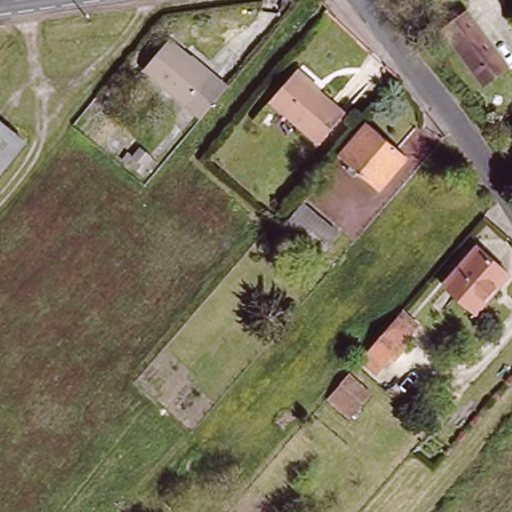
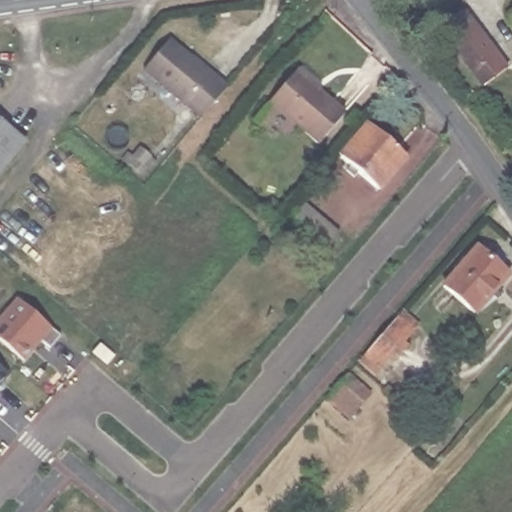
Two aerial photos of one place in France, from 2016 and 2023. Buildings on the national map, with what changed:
unchanged [(486,83),(476,69),(445,27),(467,10),(499,53),(509,67),(486,83)]
unchanged [(137,77),(147,66),(172,37),(228,85),(204,114),(165,82),(156,93),(137,77)]
unchanged [(296,71),(312,86),(311,88),(342,117),(317,146),(267,102),(296,71)]
unchanged [(0,172),(0,124),(24,144),(0,172)]
unchanged [(407,157),(379,189),(342,156),(370,125),(407,157)]
unchanged [(152,151),(144,161),(136,153),(144,144),(152,151)]
unchanged [(340,232),(322,252),(299,232),(292,241),(281,231),(305,203),(340,232)]
unchanged [(474,312),(442,285),(477,245),(509,272),(474,312)]
new [(65,330),(55,342),(46,335),(29,355),(0,332),(0,317),(21,293),(65,330)]
unchanged [(405,346),(396,357),(392,354),(382,364),(367,351),(396,318),(412,331),(402,343),(405,346)]
new [(0,385),(0,359),(13,369),(0,385)]
unchanged [(327,398),(349,374),(371,394),(349,418),(327,398)]

